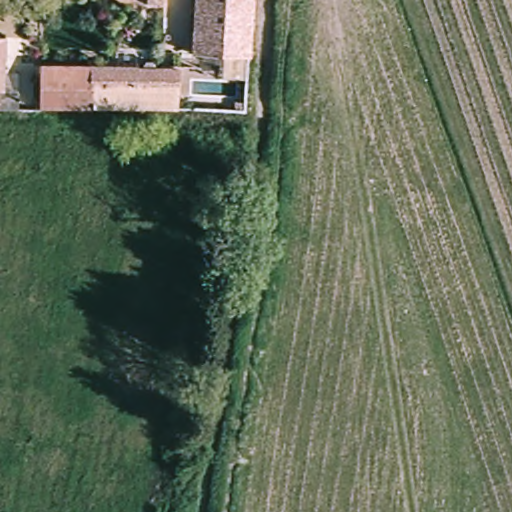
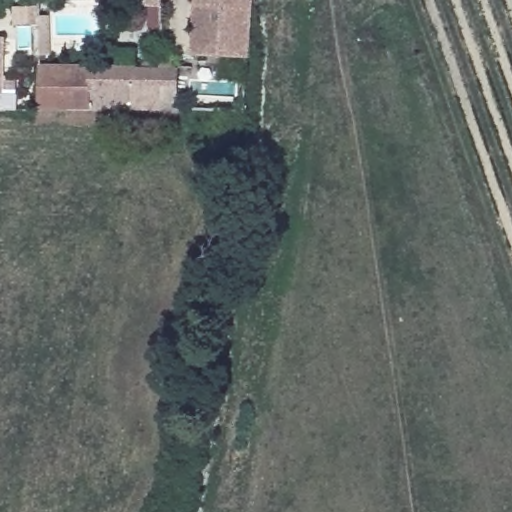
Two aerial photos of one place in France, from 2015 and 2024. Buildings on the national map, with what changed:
unchanged [(249,0),(244,111),(39,109),(39,66),(157,68),(190,68),(193,0),(249,0)]
unchanged [(16,104),(0,103),(0,36),(2,36),(1,88),(16,88),(16,104)]

